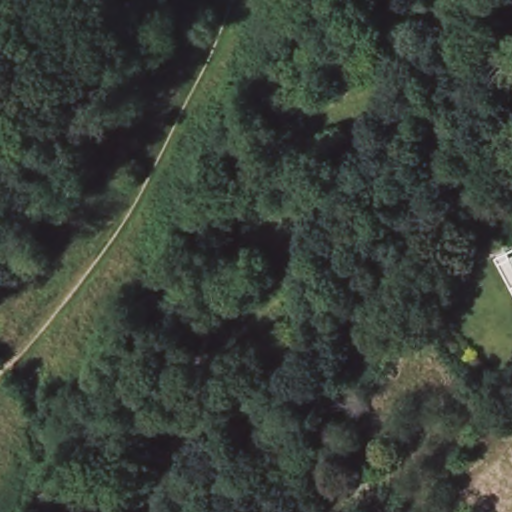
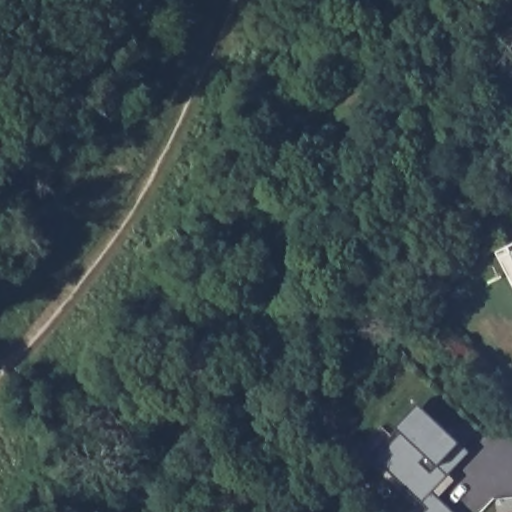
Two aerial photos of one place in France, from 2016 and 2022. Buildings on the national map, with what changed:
unchanged [(512,243),(512,279),(498,250),(512,243)]
new [(401,430),(395,425),(418,401),(470,451),(432,490),(455,512),(423,512),(427,507),(375,457),(401,430)]

